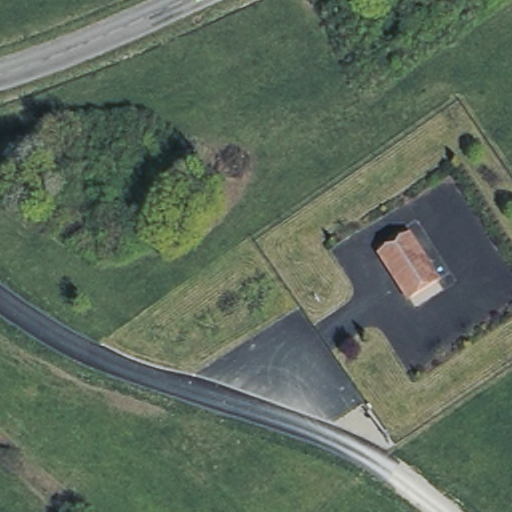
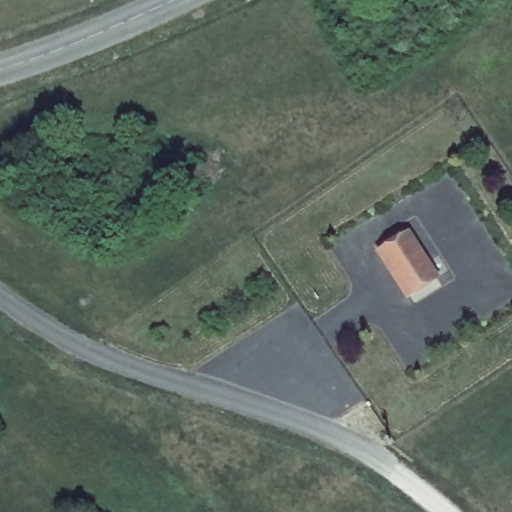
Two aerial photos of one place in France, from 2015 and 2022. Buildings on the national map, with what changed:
unchanged [(408,296),(387,265),(379,252),(407,233),(415,245),(436,278),(408,296)]

